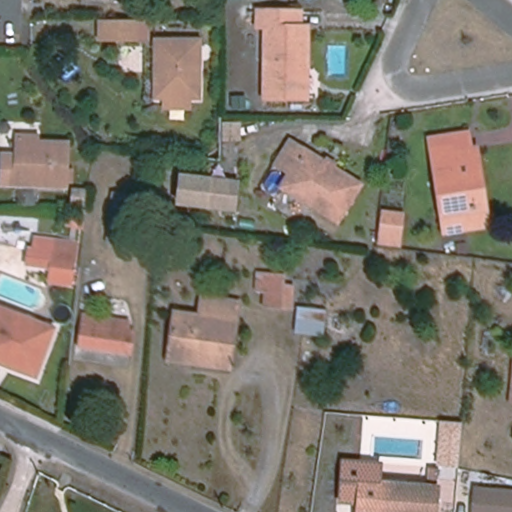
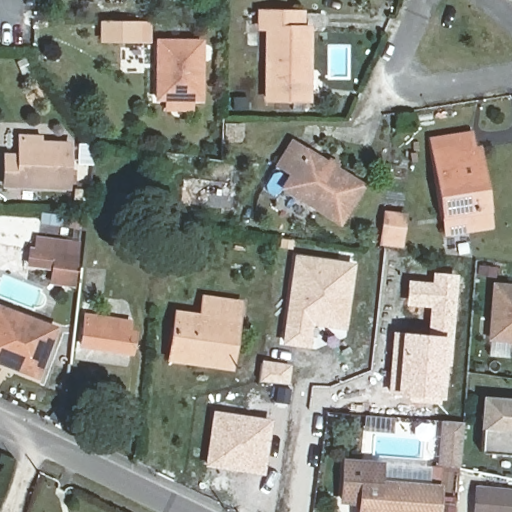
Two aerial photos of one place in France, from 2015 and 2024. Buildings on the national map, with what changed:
unchanged [(300,10),(300,29),(307,30),(307,102),(265,101),(266,30),(258,30),(258,11),(300,10)]
unchanged [(143,20),(143,39),(107,39),(107,19),(143,20)]
unchanged [(173,109),(174,98),(164,98),(165,40),(209,40),(208,99),(196,99),(196,110),(173,109)]
unchanged [(490,224),(486,225),(471,226),(447,230),(446,224),(445,216),(445,214),(435,138),(472,131),(474,147),(481,146),(488,207),(490,221),(490,224)]
unchanged [(64,185),(1,181),(2,152),(16,154),(17,140),(18,132),(38,134),(38,141),(66,142),(64,185)]
unchanged [(360,183),(346,211),(341,220),(324,211),(285,190),(291,179),(277,170),(291,146),(360,183)]
unchanged [(183,200),(183,184),(239,184),(239,200),(239,206),(239,210),(183,210),(183,200)]
unchanged [(114,205),(135,207),(130,239),(109,235),(114,205)]
new [(379,245),(382,210),(407,214),(403,247),(379,245)]
unchanged [(35,267),(37,242),(42,242),(43,234),(86,240),(85,248),(83,272),(35,267)]
new [(294,255),(354,262),(346,330),(312,325),(309,347),(281,343),(294,255)]
demolished [(278,285),(275,305),(258,303),(262,272),(279,274),(278,285)]
new [(431,281),(432,272),(458,275),(450,366),(446,366),(443,399),(439,398),(438,405),(406,402),(407,395),(397,395),(386,393),(392,332),(401,332),(424,333),(428,307),(404,305),(407,280),(431,281)]
new [(492,283),(512,284),(512,342),(488,340),(492,283)]
unchanged [(37,380),(0,365),(0,302),(57,326),(37,380)]
demolished [(331,308),(327,342),(298,338),(302,305),(331,308)]
unchanged [(165,360),(170,320),(185,321),(196,323),(198,306),(233,310),(224,373),(184,369),(164,366),(165,360)]
unchanged [(103,317),(117,320),(116,327),(115,330),(130,332),(127,353),(78,345),(82,315),(103,317)]
demolished [(512,375),(512,394),(510,393),(512,375)]
new [(481,429),(483,396),(512,398),(512,455),(481,454),(481,429)]
new [(272,420),(263,475),(204,466),(212,410),(272,420)]
new [(444,467),(444,488),(430,487),(430,465),(438,466),(442,420),(465,422),(460,466),(444,467)]
unchanged [(385,485),(444,488),(442,512),(367,512),(368,504),(354,503),(350,503),(352,465),(358,465),(386,466),(385,485)]
unchanged [(504,492),(502,512),(476,512),(479,490),(504,492)]

